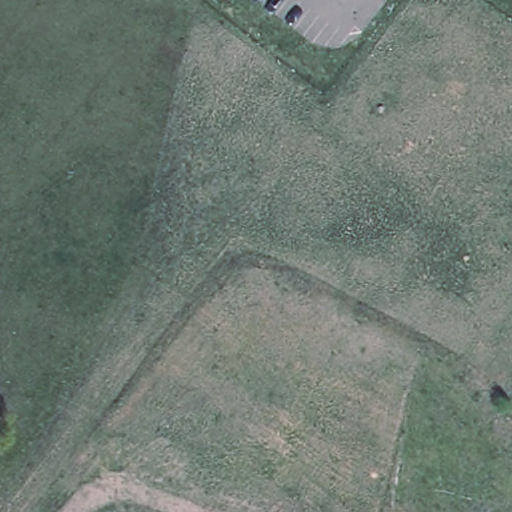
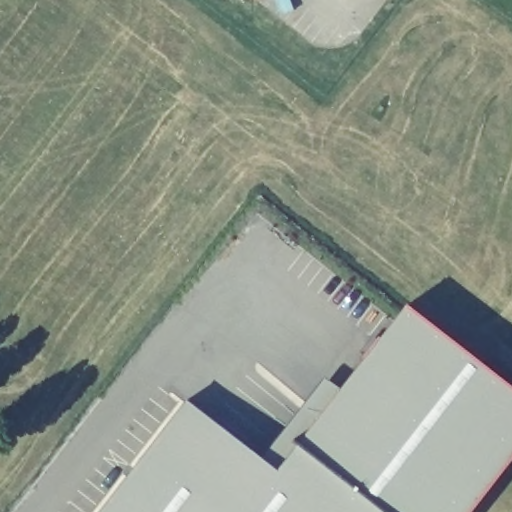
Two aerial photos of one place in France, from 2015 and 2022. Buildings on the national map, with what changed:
new [(470,512),(97,512),(183,402),(259,460),(322,378),(337,391),(404,306),(512,391),(512,457),(470,512)]

